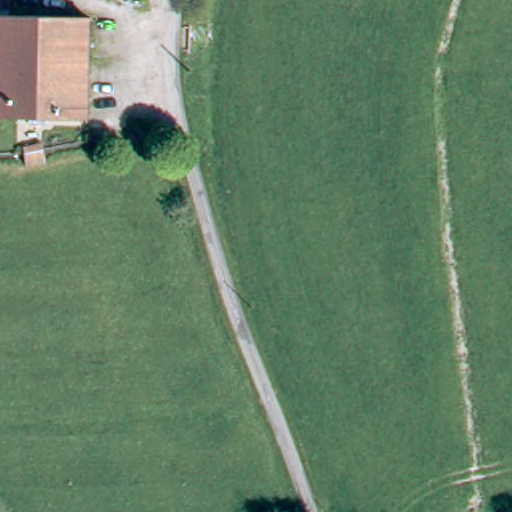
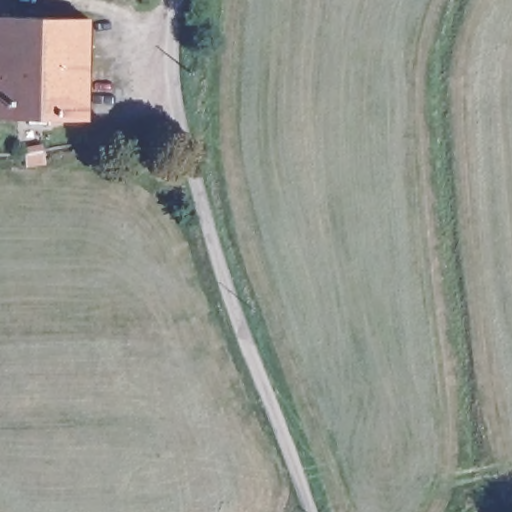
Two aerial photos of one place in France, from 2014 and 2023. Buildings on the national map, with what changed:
unchanged [(10,0),(10,12),(85,12),(84,115),(0,115),(0,0),(10,0)]

